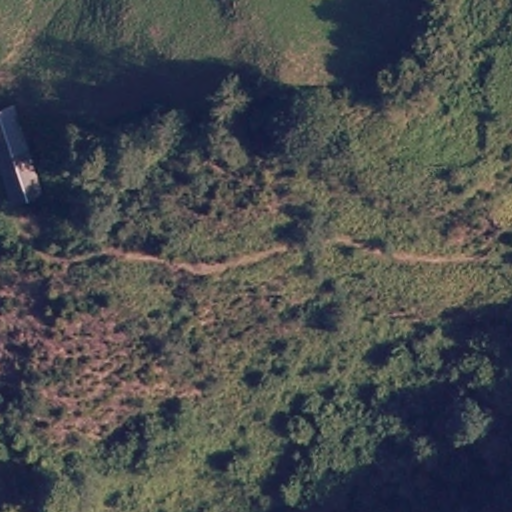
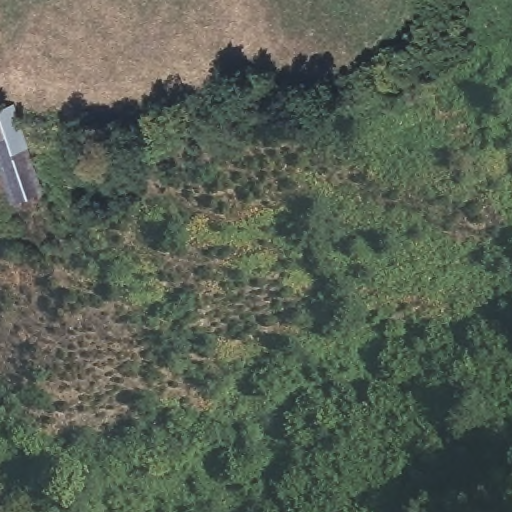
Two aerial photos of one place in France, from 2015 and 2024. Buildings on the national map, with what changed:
unchanged [(18,108),(44,191),(11,204),(0,173),(0,113),(18,108)]

